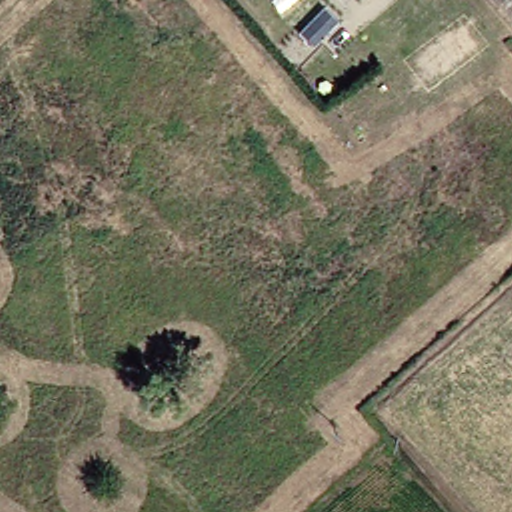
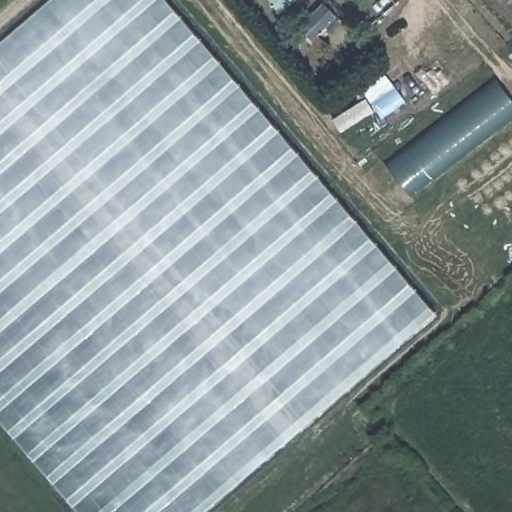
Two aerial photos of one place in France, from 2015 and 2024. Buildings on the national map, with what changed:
new [(52,0),(166,0),(436,316),(208,512),(77,512),(0,421),(0,44),(52,0)]
new [(341,133),(333,120),(369,97),(364,90),(387,74),(407,104),(383,120),(377,110),(341,133)]
new [(388,168),(498,83),(512,101),(512,120),(412,198),(388,168)]

